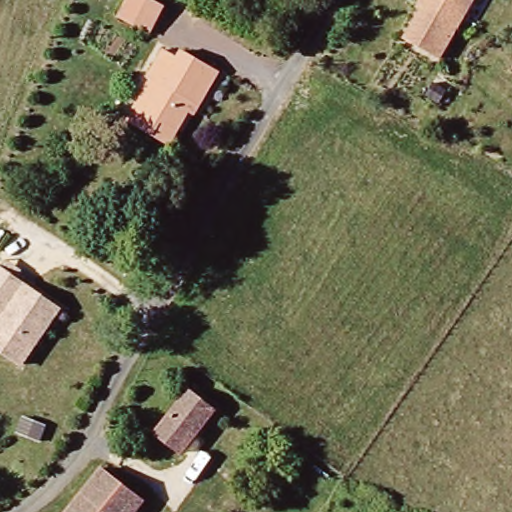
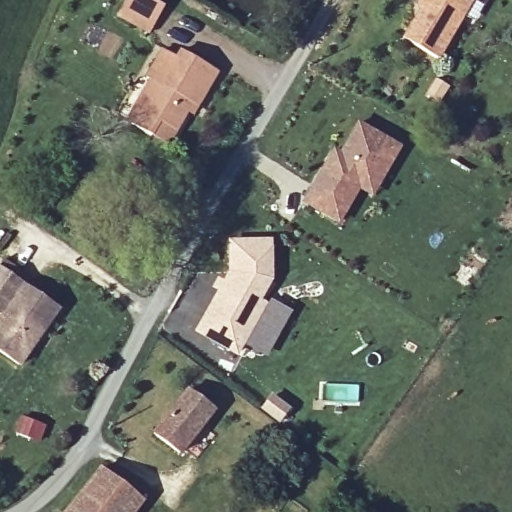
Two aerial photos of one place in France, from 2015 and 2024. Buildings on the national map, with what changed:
unchanged [(165,6),(151,32),(119,15),(127,0),(154,0),(165,6)]
unchanged [(439,61),(406,41),(425,8),(421,5),(424,0),(475,0),(439,61)]
unchanged [(153,136),(133,124),(129,121),(153,79),(149,77),(165,49),(180,57),(184,50),(219,70),(199,106),(195,113),(189,110),(177,131),(169,145),(153,136)]
new [(359,188),(339,222),(304,202),(330,160),(335,151),(341,155),(359,124),(400,148),(382,178),(372,196),(359,188)]
new [(230,274),(230,243),(268,244),(269,280),(256,302),(263,305),(235,353),(197,332),(230,274)]
unchanged [(23,289),(58,313),(20,369),(0,355),(0,323),(3,319),(0,317),(0,272),(23,289)]
unchanged [(216,412),(181,456),(155,435),(190,391),(216,412)]
unchanged [(136,512),(70,512),(103,470),(144,503),(136,512)]

